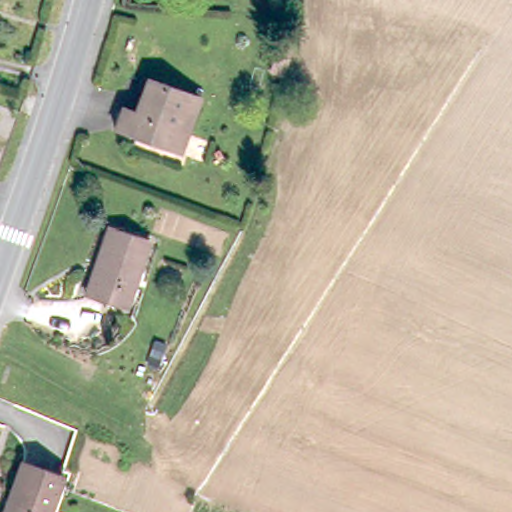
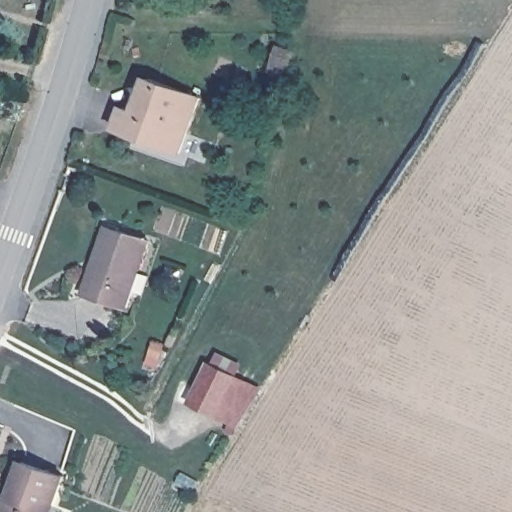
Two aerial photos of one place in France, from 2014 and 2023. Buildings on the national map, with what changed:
unchanged [(140,111),(151,78),(201,97),(181,153),(117,128),(125,105),(140,111)]
unchanged [(151,242),(127,309),(88,293),(97,268),(93,266),(108,226),(151,242)]
new [(210,361),(250,380),(235,417),(192,403),(210,361)]
unchanged [(3,494),(16,460),(23,462),(37,466),(58,472),(45,512),(0,512),(0,503),(3,494)]

